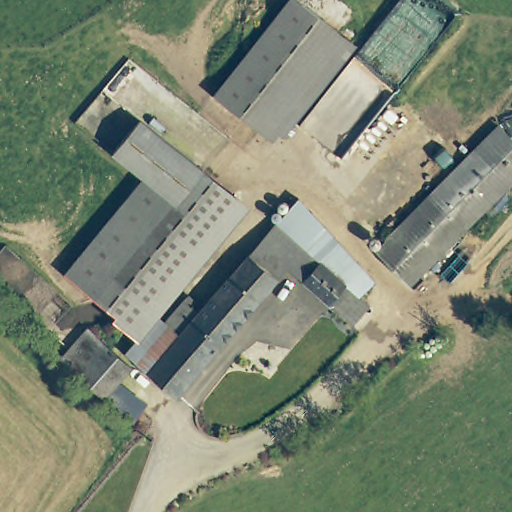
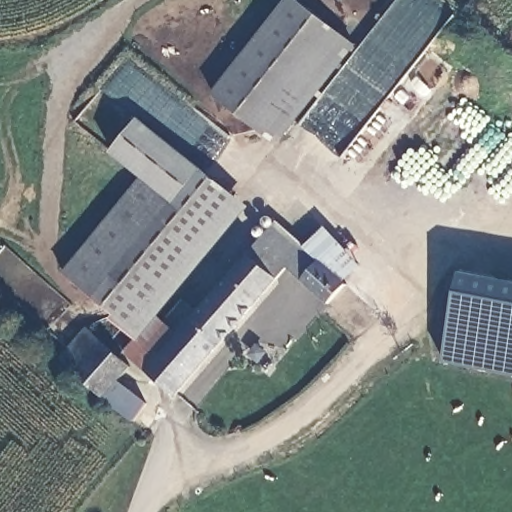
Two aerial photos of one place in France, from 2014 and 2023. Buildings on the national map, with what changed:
unchanged [(300,0),(354,45),(285,133),(274,126),(266,136),(212,92),(288,0),(300,0)]
unchanged [(115,149),(142,116),(237,194),(210,227),(146,175),(115,149)]
demolished [(500,121),(512,135),(512,180),(406,286),(368,248),(412,204),(500,121)]
unchanged [(146,175),(210,227),(126,328),(112,317),(116,313),(66,271),(146,175)]
unchanged [(301,195),(327,224),(308,245),(279,220),(301,195)]
unchanged [(132,356),(126,351),(158,315),(164,319),(165,320),(190,292),(198,297),(193,303),(200,310),(279,220),(308,245),(330,265),(362,294),(383,312),(362,334),(339,308),(291,265),(178,394),(132,356)]
unchanged [(327,224),(339,238),(375,278),(371,283),(362,294),(330,265),(308,245),(327,224)]
new [(512,279),(512,371),(446,359),(462,270),(512,279)]
unchanged [(75,340),(86,328),(126,362),(130,366),(119,378),(104,396),(60,358),(75,340)]
unchanged [(130,389),(139,396),(148,404),(133,421),(126,415),(104,396),(119,380),(130,389)]

